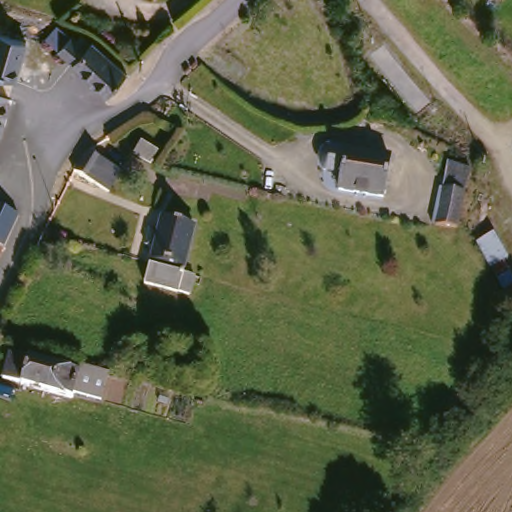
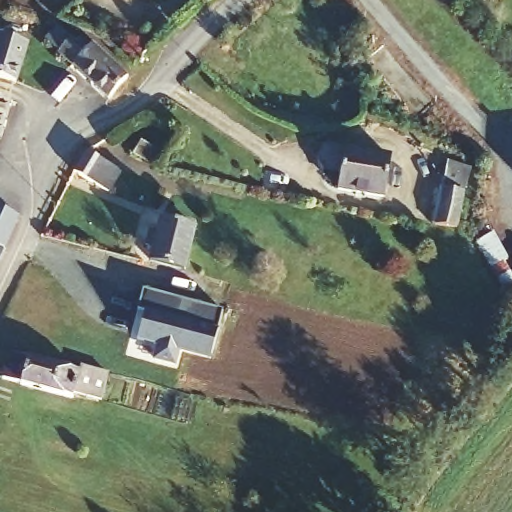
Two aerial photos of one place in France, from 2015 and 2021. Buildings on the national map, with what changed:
unchanged [(54,27),(78,45),(81,40),(118,69),(99,89),(42,42),(54,27)]
unchanged [(33,42),(23,81),(0,76),(0,49),(5,35),(33,42)]
unchanged [(0,92),(6,94),(0,120),(0,92)]
unchanged [(385,191),(343,187),(344,177),(330,175),(329,175),(327,175),(326,174),(325,173),(324,172),(323,171),(322,170),(321,169),(321,167),(321,165),(321,164),(321,163),(321,162),(321,160),(321,158),(321,157),(322,156),(323,156),(323,155),(324,153),(325,152),(326,152),(328,151),(330,150),(331,150),(332,150),(349,152),(349,148),(390,153),(385,191)]
unchanged [(161,171),(151,183),(134,169),(145,157),(161,171)]
unchanged [(99,162),(121,175),(130,181),(118,203),(104,196),(84,183),(99,162)]
unchanged [(465,216),(464,221),(464,223),(464,224),(440,218),(448,184),(471,187),(465,216)]
unchanged [(0,238),(0,204),(14,211),(0,238)]
unchanged [(179,266),(146,256),(149,246),(139,242),(146,224),(154,227),(159,213),(192,223),(179,266)]
demolished [(189,276),(184,300),(141,289),(146,266),(189,276)]
new [(153,361),(156,347),(136,342),(143,312),(138,310),(143,288),(223,309),(211,362),(178,352),(175,366),(153,361)]
demolished [(161,354),(157,370),(132,362),(136,347),(161,354)]
unchanged [(86,372),(79,399),(13,382),(21,355),(86,372)]

